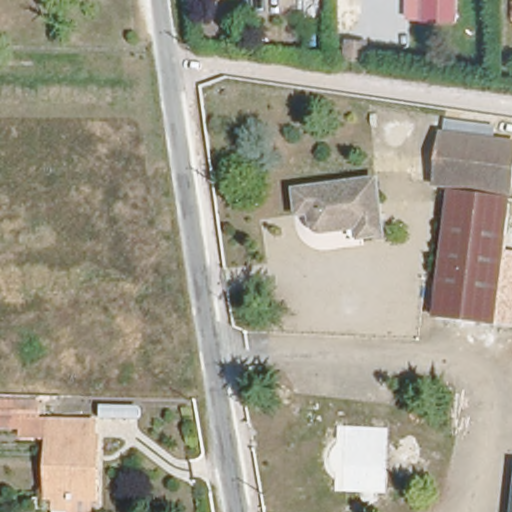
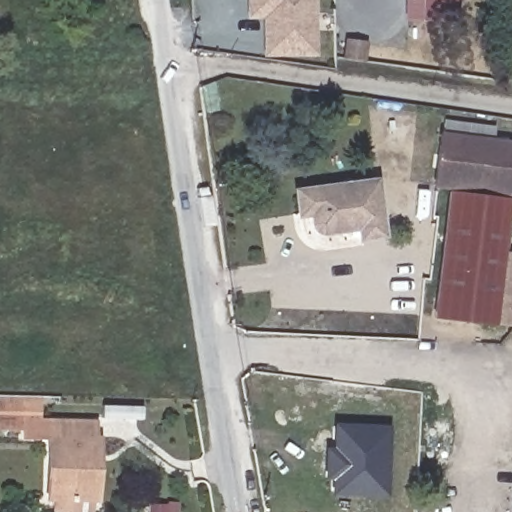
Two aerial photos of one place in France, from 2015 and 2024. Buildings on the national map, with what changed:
new [(247,15),(247,0),(311,0),(312,53),(263,53),(263,36),(263,29),(263,15),(247,15)]
unchanged [(422,20),(407,19),(407,0),(458,0),(458,21),(422,20)]
unchanged [(501,195),(426,186),(432,131),(507,140),(501,195)]
unchanged [(385,235),(359,238),(357,227),(328,231),(327,230),(325,230),(324,230),(322,230),(321,229),(320,228),(319,228),(317,227),(316,226),(315,225),(314,224),(313,223),(312,222),(312,221),(311,219),(311,218),(310,217),(310,215),(309,214),(309,213),(297,215),(293,191),(375,181),(385,235)]
unchanged [(493,317),(435,308),(451,203),(509,212),(493,317)]
demolished [(510,333),(512,333),(512,364),(506,364),(510,333)]
unchanged [(30,398),(30,416),(22,416),(21,427),(0,427),(1,397),(30,398)]
unchanged [(101,482),(101,502),(50,499),(53,440),(30,439),(31,421),(93,424),(92,442),(103,443),(101,482)]
new [(334,425),(384,427),(381,492),(331,490),(332,468),(333,456),(334,425)]
unchanged [(512,477),(512,512),(509,512),(512,477)]

